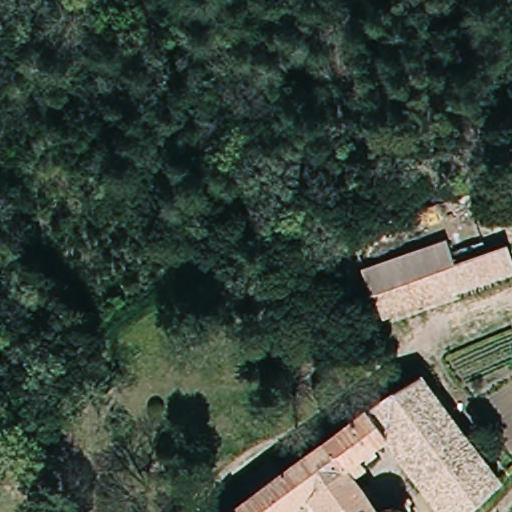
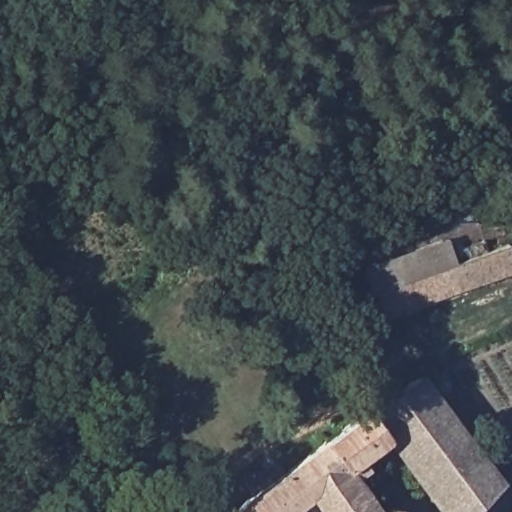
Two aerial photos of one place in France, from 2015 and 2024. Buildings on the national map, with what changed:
unchanged [(457,251),(487,240),(490,247),(512,240),(512,273),(387,320),(370,268),(452,237),(457,251)]
unchanged [(295,501),(281,512),(233,512),(389,390),(415,375),(492,484),(463,512),(435,512),(380,438),(355,458),(361,468),(345,480),(370,512),(303,512),(295,501)]

